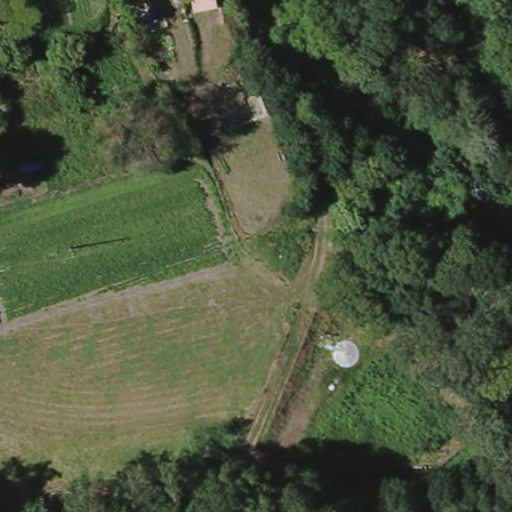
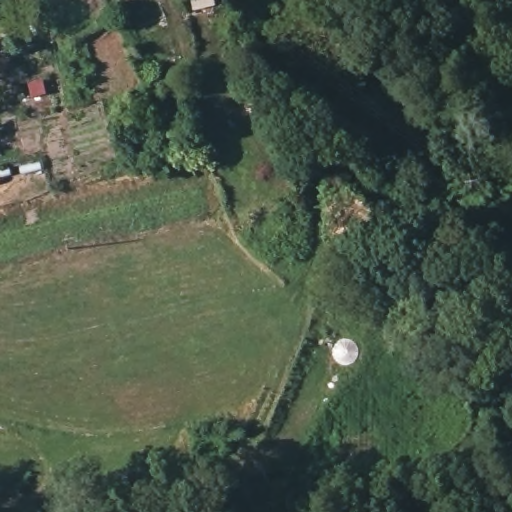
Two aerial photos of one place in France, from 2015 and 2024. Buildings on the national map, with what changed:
unchanged [(10,161),(7,162),(0,164),(0,147),(6,146),(8,158),(10,161)]

